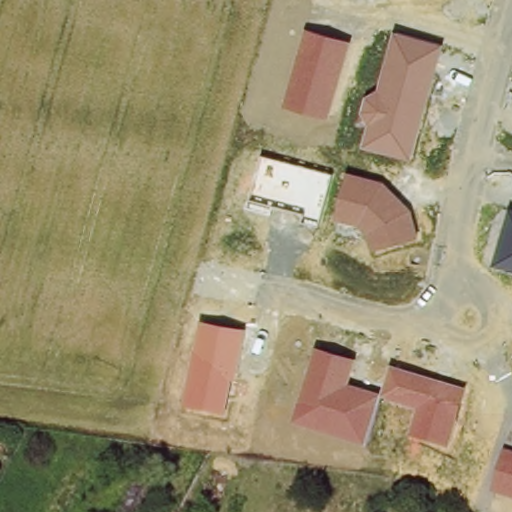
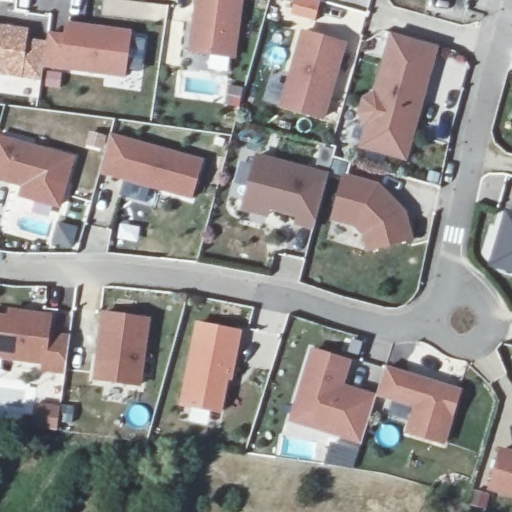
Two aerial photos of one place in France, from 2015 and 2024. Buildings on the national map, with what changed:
new [(242,0),(234,57),(192,52),(198,0),(242,0)]
new [(316,22),(292,15),(296,0),(320,0),(322,1),(316,22)]
new [(46,45),(48,35),(66,37),(67,25),(130,34),(124,76),(43,65),(46,45)]
new [(25,41),(46,45),(43,65),(41,79),(0,72),(0,27),(27,31),(25,41)]
unchanged [(304,30),(347,42),(326,122),(282,108),(304,30)]
unchanged [(366,129),(358,117),(363,101),(375,93),(391,32),(443,46),(409,162),(358,149),(366,129)]
new [(113,134),(204,160),(194,195),(104,170),(113,134)]
new [(0,136),(1,135),(77,156),(64,204),(34,195),(26,193),(29,182),(0,175),(0,136)]
unchanged [(259,156),(331,176),(317,231),(301,226),(303,217),(272,210),(269,217),(244,210),(259,156)]
unchanged [(345,175),(380,182),(407,210),(415,241),(372,254),(367,237),(356,227),(333,220),(345,175)]
unchanged [(489,267),(507,210),(512,211),(512,273),(489,267)]
new [(14,308),(54,314),(51,332),(73,335),(69,370),(46,367),(47,361),(0,355),(0,314),(13,316),(14,308)]
new [(108,311),(152,317),(142,383),(98,377),(108,311)]
unchanged [(244,331),(227,413),(182,405),(201,322),(244,331)]
unchanged [(363,443),(293,422),(315,349),(353,360),(346,385),(377,395),(363,443)]
unchanged [(389,366),(460,388),(444,445),(408,435),(416,410),(380,397),(389,366)]
unchanged [(504,447),(512,449),(512,497),(492,491),(504,447)]

